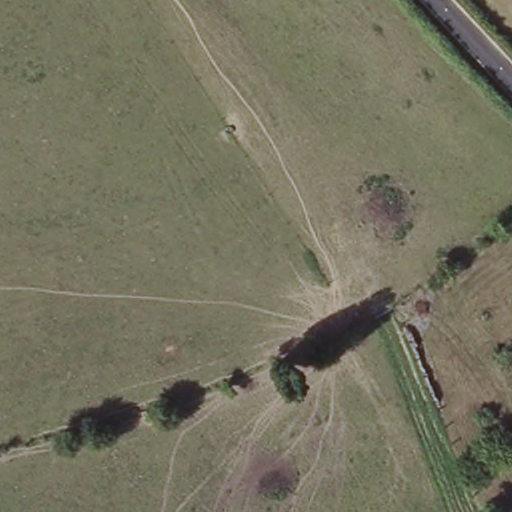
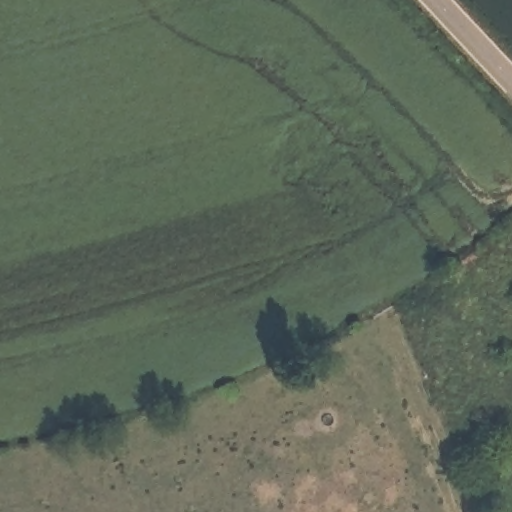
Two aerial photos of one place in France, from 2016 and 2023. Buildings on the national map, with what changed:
[]

